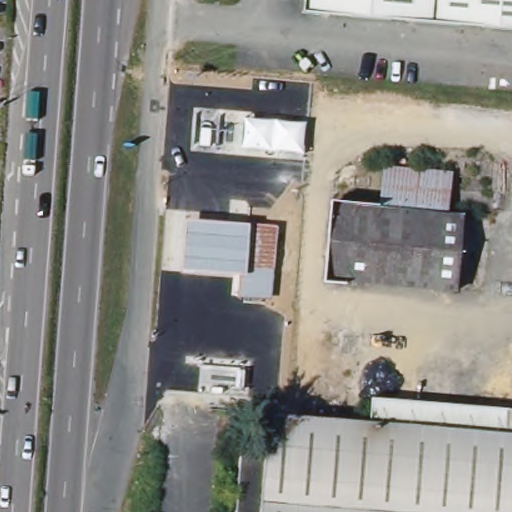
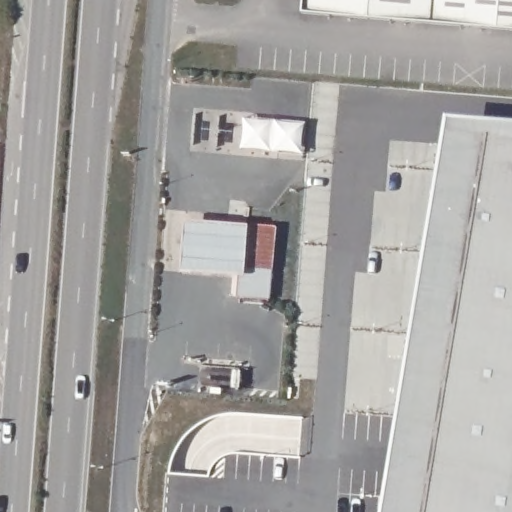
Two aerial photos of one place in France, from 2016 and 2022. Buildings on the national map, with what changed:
unchanged [(307,10),(308,0),(512,0),(512,26),(307,10)]
new [(409,435),(441,338),(442,236),(470,138),(512,145),(512,512),(409,512),(409,435)]
demolished [(327,204),(376,209),(380,167),(448,174),(444,215),(458,216),(452,290),(319,278),(327,204)]
unchanged [(192,260),(196,219),(245,222),(242,263),(192,260)]
unchanged [(242,263),(245,222),(274,225),(268,295),(239,293),(242,263)]
demolished [(266,340),(252,333),(266,308),(308,331),(276,385),(249,370),(266,340)]
demolished [(230,447),(258,448),(261,413),(359,420),(495,430),(512,431),(512,512),(225,512),(230,447)]

